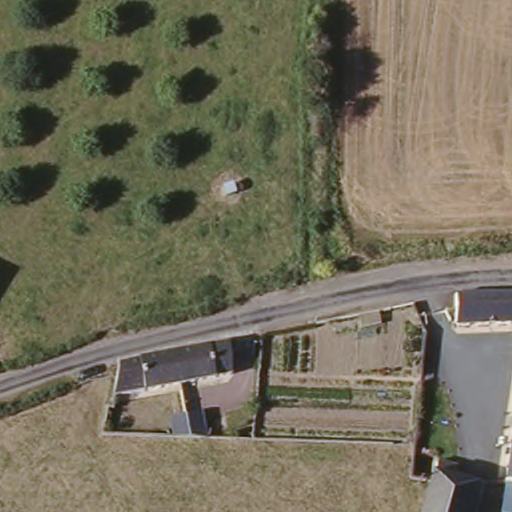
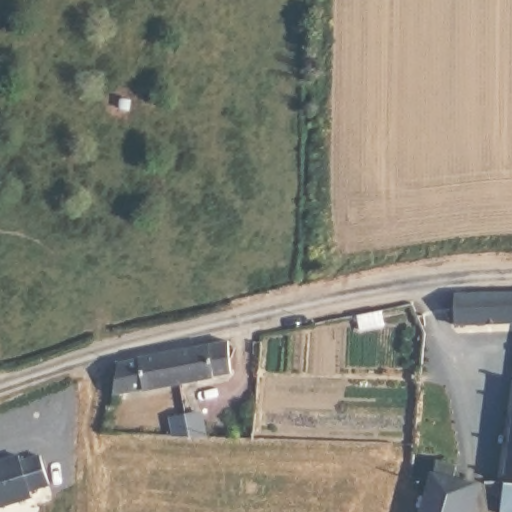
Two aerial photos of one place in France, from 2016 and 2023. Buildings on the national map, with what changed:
unchanged [(456,320),(453,292),(455,289),(512,288),(512,318),(456,320)]
unchanged [(142,359),(229,340),(235,372),(111,398),(117,366),(142,359)]
unchanged [(209,413),(211,440),(176,440),(173,420),(209,413)]
unchanged [(506,477),(512,431),(512,478),(506,477)]
new [(20,459),(39,454),(49,484),(30,491),(32,496),(0,507),(0,459),(18,454),(20,459)]
unchanged [(429,473),(431,461),(451,467),(450,480),(461,483),(454,512),(415,512),(423,481),(425,471),(429,473)]
unchanged [(502,503),(506,477),(512,478),(512,505),(502,503)]
unchanged [(471,512),(454,512),(461,483),(477,487),(471,512)]

